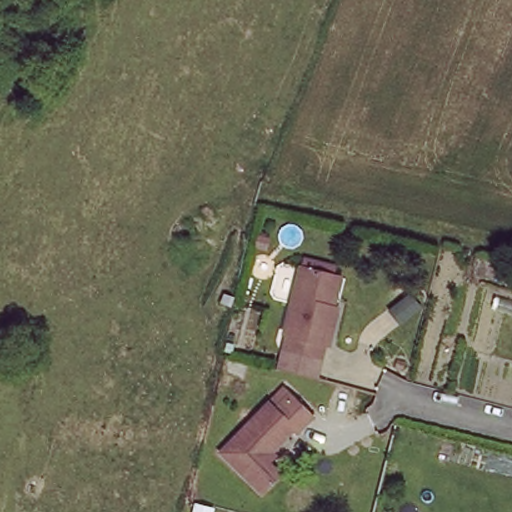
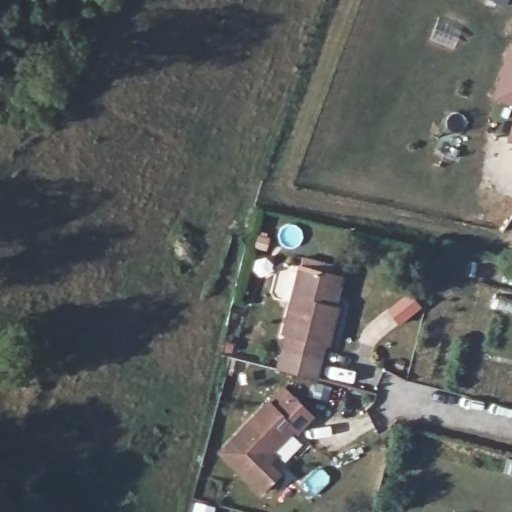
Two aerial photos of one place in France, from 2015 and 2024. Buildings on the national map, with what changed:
new [(497,97),(512,43),(512,44),(512,101),(497,97)]
new [(512,134),(512,139),(510,139),(512,134)]
unchanged [(340,295),(344,296),(336,327),(330,332),(323,363),(286,354),(294,320),(290,319),(305,255),(307,244),(343,252),(341,263),(347,265),(340,295)]
unchanged [(312,407),(300,422),(293,420),(266,450),(282,467),(265,485),(225,447),(286,382),(312,407)]

